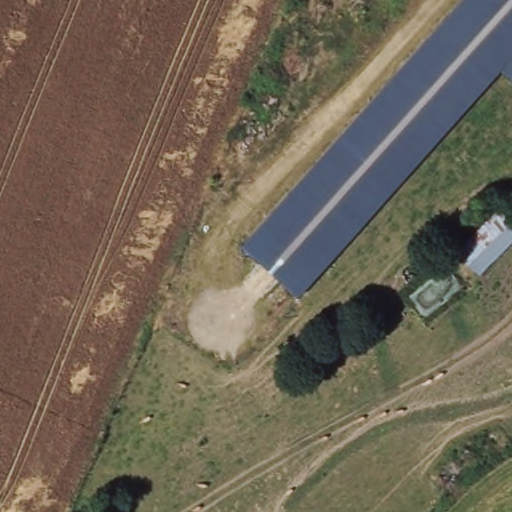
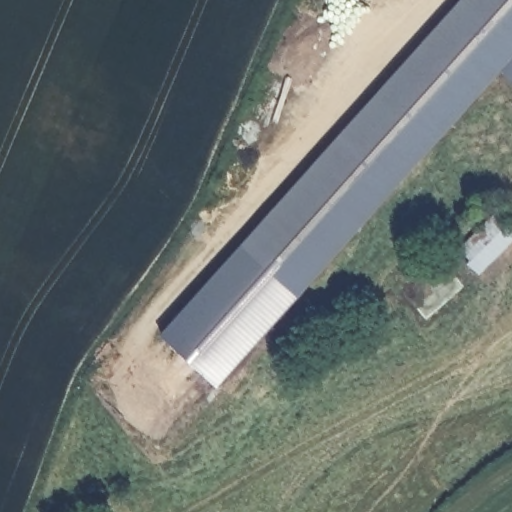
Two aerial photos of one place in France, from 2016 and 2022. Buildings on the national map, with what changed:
unchanged [(301,289),(246,241),(456,0),(512,0),(512,78),(504,71),(301,289)]
unchanged [(512,216),(512,243),(479,276),(456,247),(502,203),(512,216)]
new [(219,383),(160,333),(246,241),(301,289),(219,383)]

